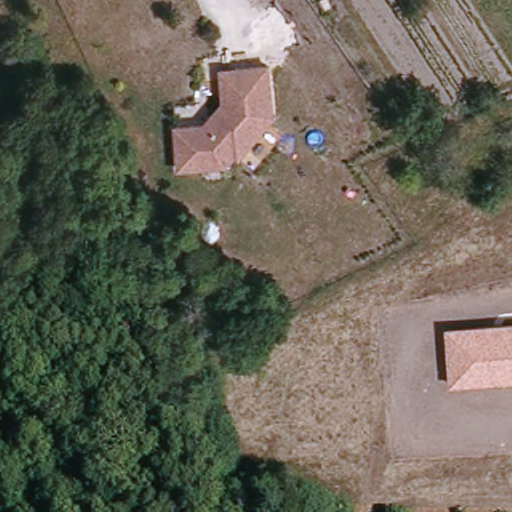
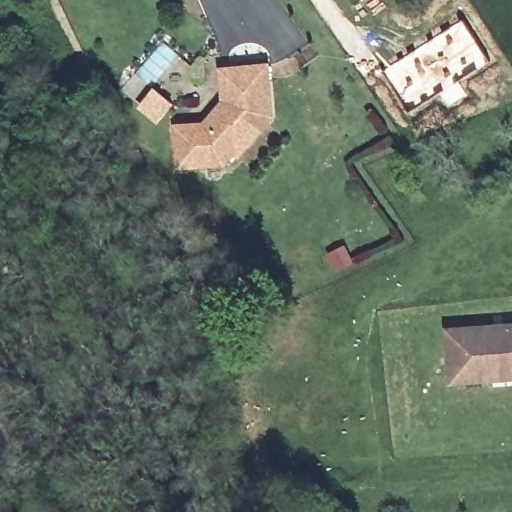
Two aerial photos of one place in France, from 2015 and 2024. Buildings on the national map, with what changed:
new [(449,106),(439,89),(431,92),(429,90),(421,92),(418,89),(408,94),(412,102),(414,101),(416,105),(407,110),(383,70),(461,21),(487,64),(457,81),(466,95),(449,106)]
unchanged [(266,119),(232,156),(227,154),(217,164),(171,166),(169,124),(198,124),(218,101),(216,68),(231,68),(263,67),(266,119)]
unchanged [(512,324),(512,382),(451,387),(446,328),(512,324)]

